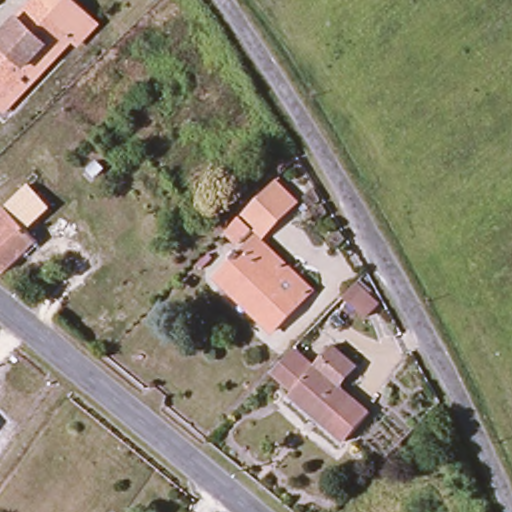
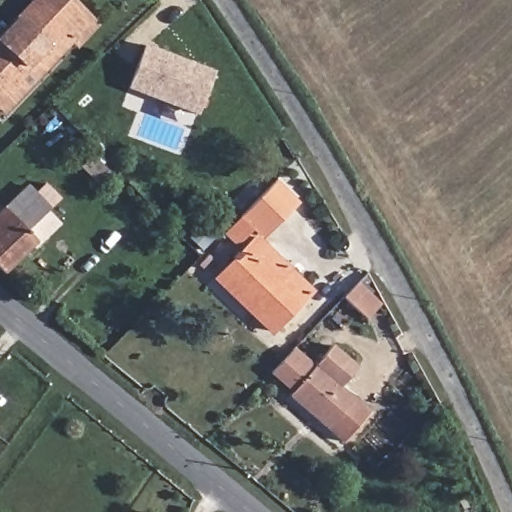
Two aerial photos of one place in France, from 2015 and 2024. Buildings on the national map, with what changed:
unchanged [(44,0),(65,0),(93,25),(76,44),(69,38),(7,104),(0,111),(0,46),(21,24),(44,0)]
new [(216,71),(199,116),(128,89),(145,45),(216,71)]
unchanged [(295,208),(267,237),(253,225),(237,242),(227,235),(274,187),(295,208)]
unchanged [(22,235),(35,247),(5,278),(0,273),(0,217),(23,194),(43,212),(22,235)]
unchanged [(216,285),(226,275),(255,245),(288,276),(310,296),(302,304),(274,333),(255,315),(252,318),(216,285)]
unchanged [(376,310),(364,324),(340,300),(353,287),(376,310)]
unchanged [(340,449),(295,408),(299,403),(273,379),(295,360),(312,375),(334,353),(347,365),(356,374),(338,393),(366,421),(340,449)]

